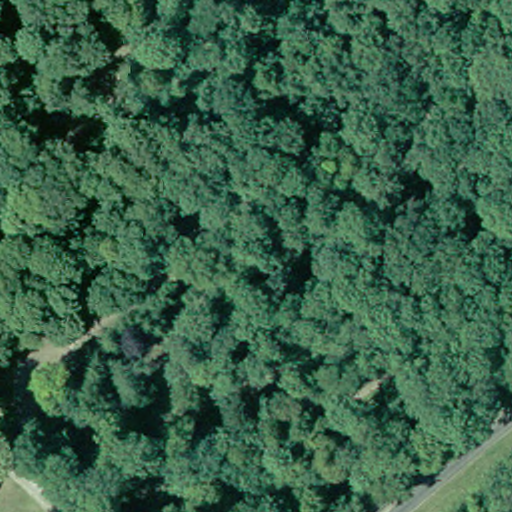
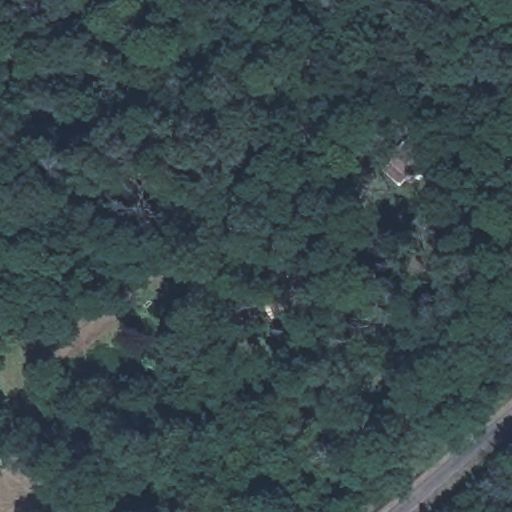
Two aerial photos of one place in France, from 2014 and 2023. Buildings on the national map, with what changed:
unchanged [(0,442),(0,425),(22,451),(15,457),(0,442)]

